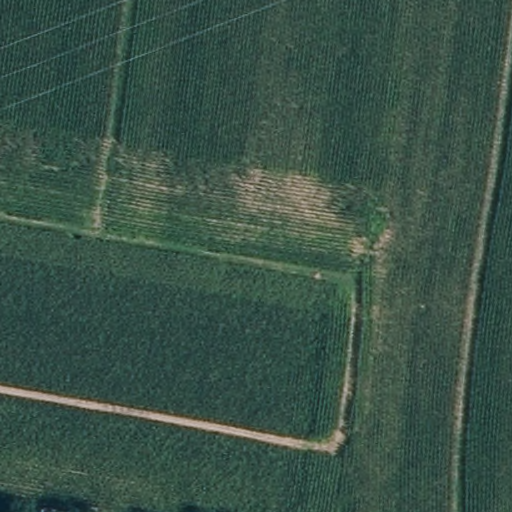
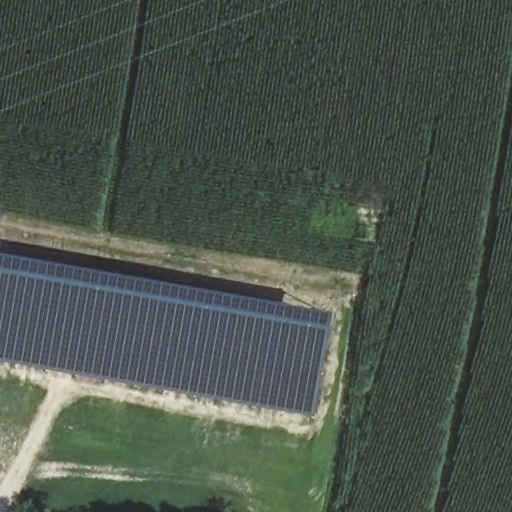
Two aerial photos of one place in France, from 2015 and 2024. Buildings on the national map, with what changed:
new [(335,314),(316,419),(163,390),(92,379),(0,362),(0,255),(335,314)]

